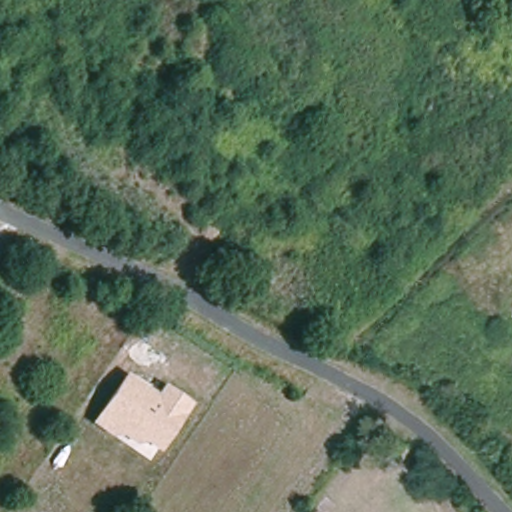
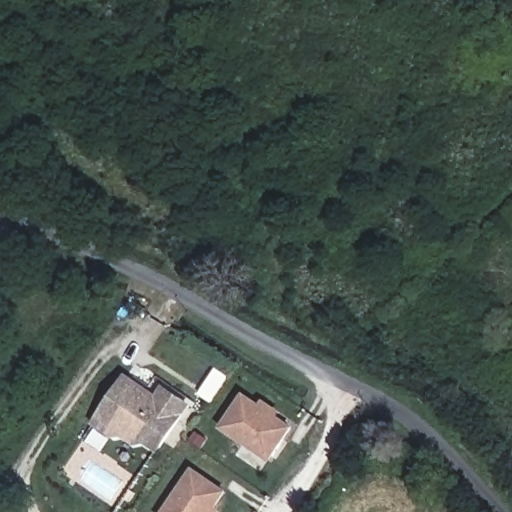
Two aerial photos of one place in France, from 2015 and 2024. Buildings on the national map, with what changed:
unchanged [(157,453),(141,442),(136,447),(116,434),(114,437),(93,424),(127,372),(156,392),(162,384),(191,403),(157,453)]
new [(259,404),(262,399),(281,412),(279,417),(294,427),(270,462),(221,428),(245,393),(259,404)]
new [(228,491),(217,509),(221,512),(163,512),(192,468),(228,491)]

